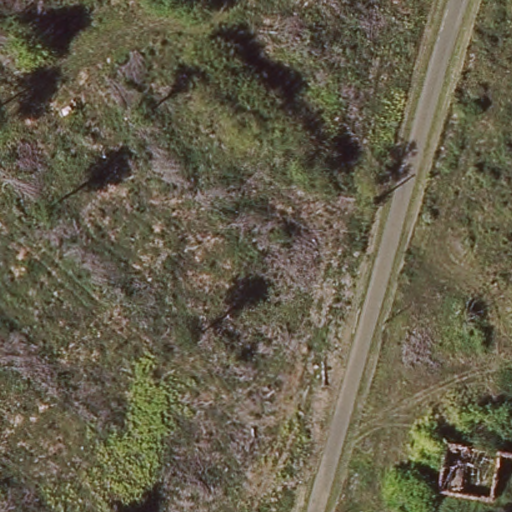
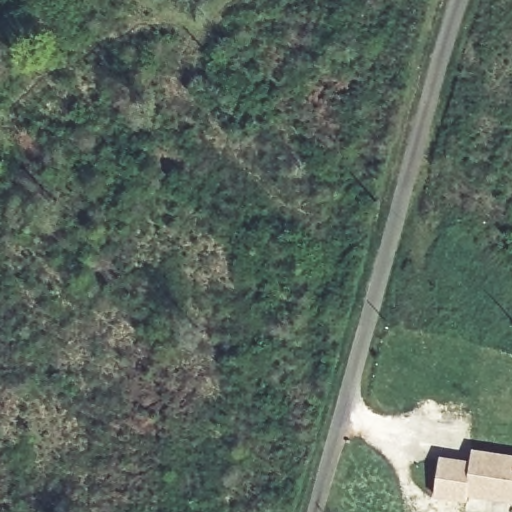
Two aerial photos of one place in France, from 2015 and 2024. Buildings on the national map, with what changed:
new [(512,502),(467,495),(466,502),(434,496),(441,455),(470,460),(471,448),(512,454),(512,502)]
demolished [(512,460),(512,508),(439,497),(446,450),(512,460)]

